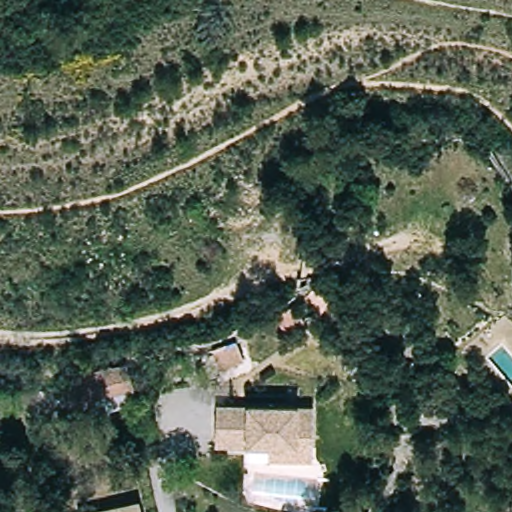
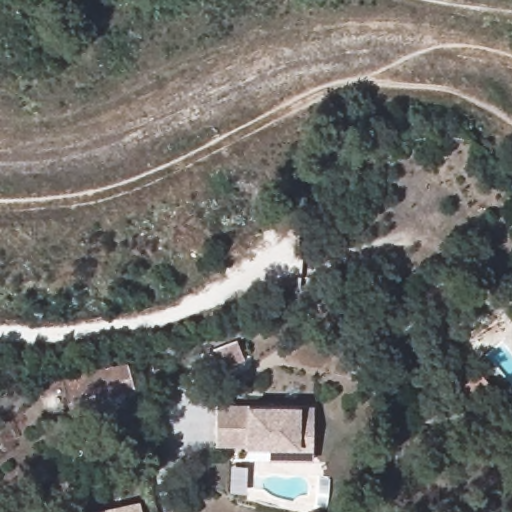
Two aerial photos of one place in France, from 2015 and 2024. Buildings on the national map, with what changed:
unchanged [(215,347),(236,342),(240,358),(219,363),(215,347)]
unchanged [(96,409),(72,416),(59,375),(123,356),(132,380),(137,397),(96,409)]
unchanged [(314,406),(313,462),(269,461),(269,448),(216,447),(217,404),(314,406)]
unchanged [(140,502),(142,512),(89,512),(140,502)]

